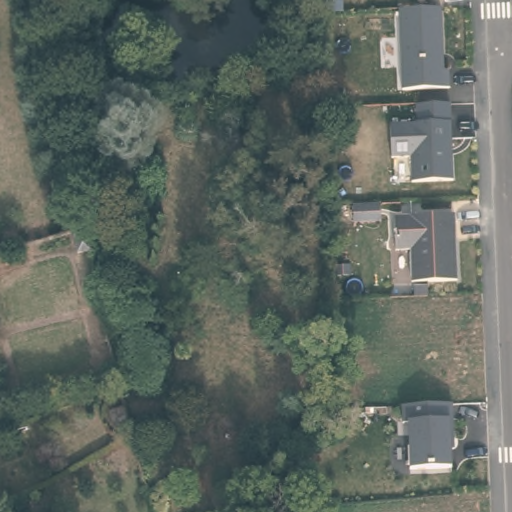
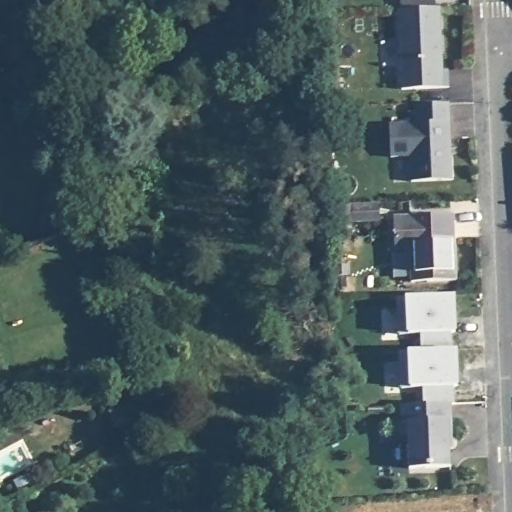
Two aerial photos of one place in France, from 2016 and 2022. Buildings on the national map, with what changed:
unchanged [(445,72),(450,73),(450,90),(401,91),(399,11),(443,11),(445,72)]
unchanged [(454,182),(411,184),(410,156),(392,158),(391,125),(415,124),(414,108),(452,106),(454,182)]
unchanged [(456,282),(412,284),(412,250),(395,250),(394,217),(454,215),(456,282)]
unchanged [(91,249),(75,252),(71,231),(87,227),(91,249)]
new [(424,387),(408,387),(407,351),(421,350),(421,332),(407,333),(405,297),(456,296),(456,330),(451,331),(451,349),(457,349),(458,384),(453,385),(454,404),(449,404),(424,405),(424,387)]
unchanged [(449,404),(452,470),(409,472),(408,426),(403,426),(402,406),(449,404)]
unchanged [(130,424),(114,429),(108,412),(124,407),(130,424)]

